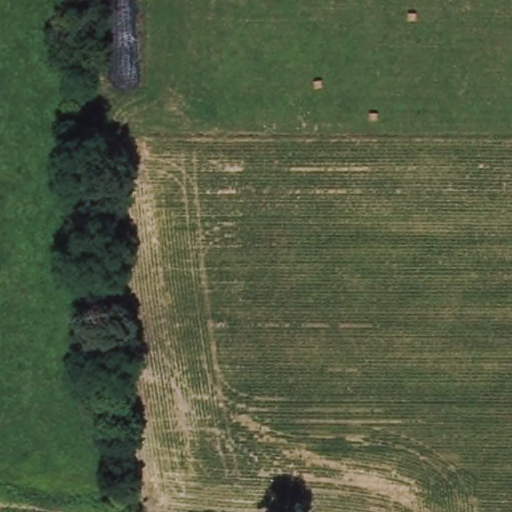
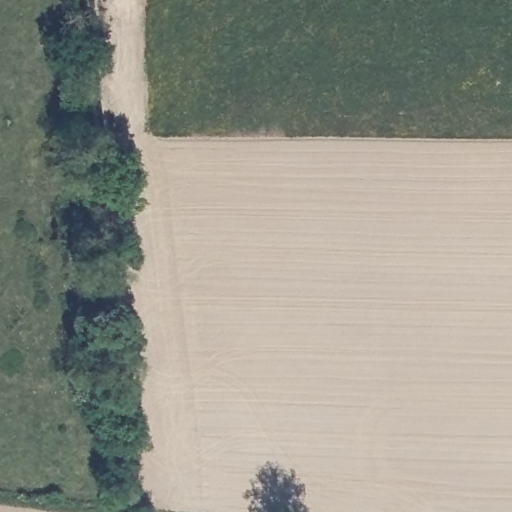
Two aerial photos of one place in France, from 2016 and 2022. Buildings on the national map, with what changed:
[]

